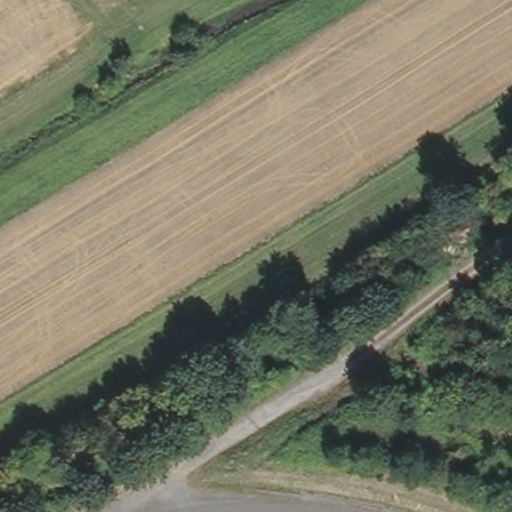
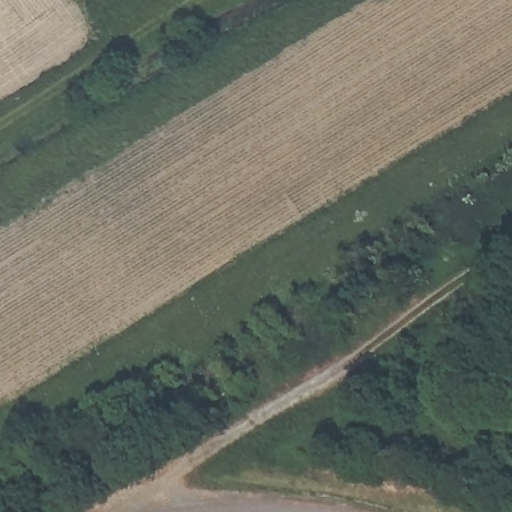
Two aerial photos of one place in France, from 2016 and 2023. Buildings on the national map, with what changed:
unchanged [(420,252),(427,247),(433,257),(428,261),(420,252)]

